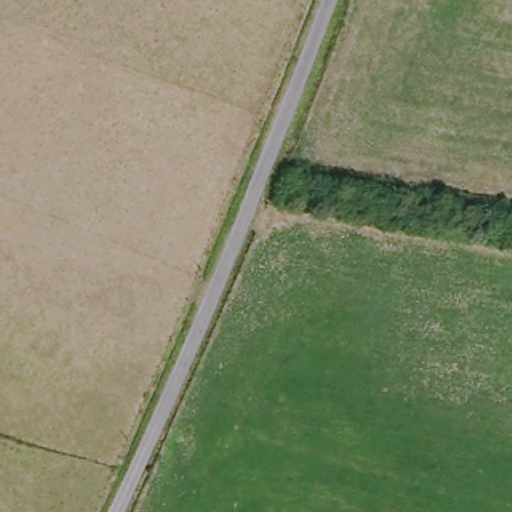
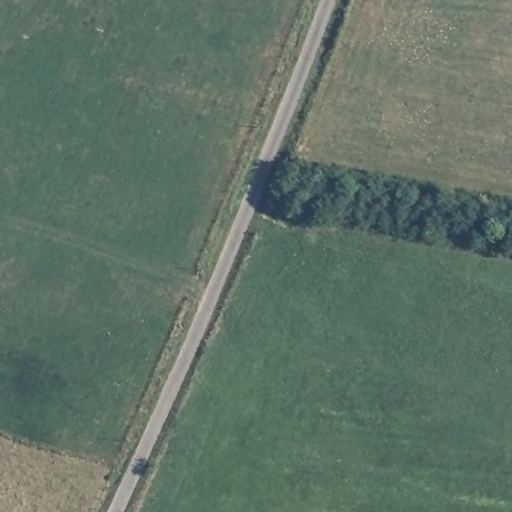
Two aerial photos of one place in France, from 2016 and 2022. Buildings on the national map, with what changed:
[]

